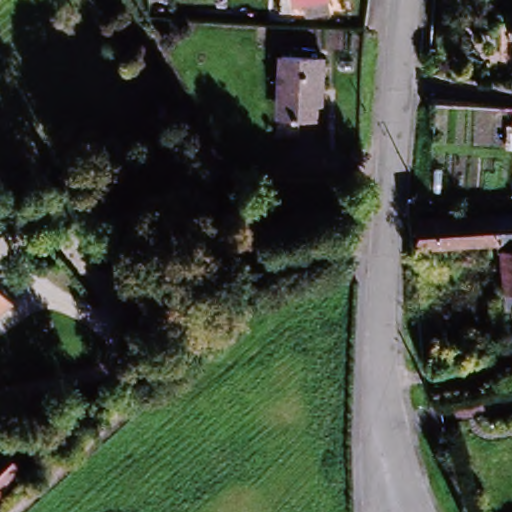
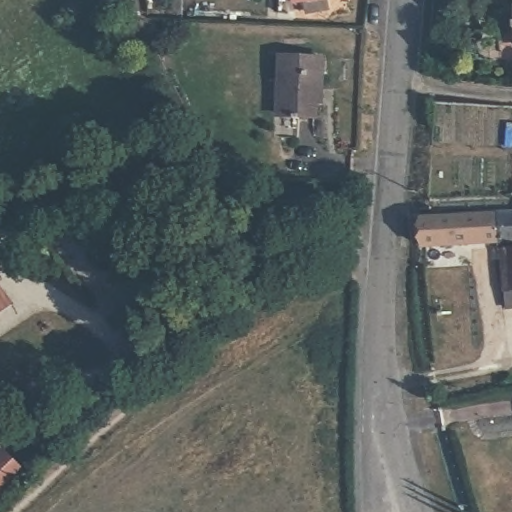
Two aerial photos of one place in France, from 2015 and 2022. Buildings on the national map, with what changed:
unchanged [(306,4),(305,1),(292,3),(292,0),(329,0),(327,1),(328,13),(307,16),(306,4)]
unchanged [(512,13),(512,30),(505,30),(507,14),(512,13)]
unchanged [(310,101),(308,116),(293,116),(293,118),(287,119),(288,115),(277,116),(278,81),(274,81),(276,56),(318,58),(315,91),(315,101),(310,101)]
unchanged [(512,210),(512,234),(495,236),(450,238),(415,240),(416,216),(448,213),(494,211),(507,210),(512,210)]
unchanged [(500,288),(498,248),(512,247),(512,304),(501,305),(500,288)]
unchanged [(10,306),(0,313),(0,291),(10,306)]
unchanged [(2,454),(20,473),(0,492),(0,456),(2,454)]

